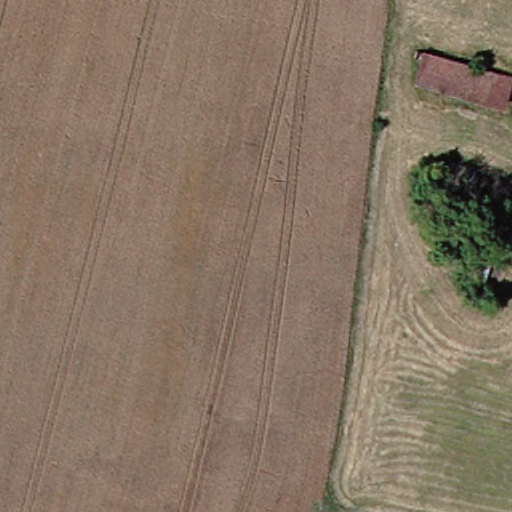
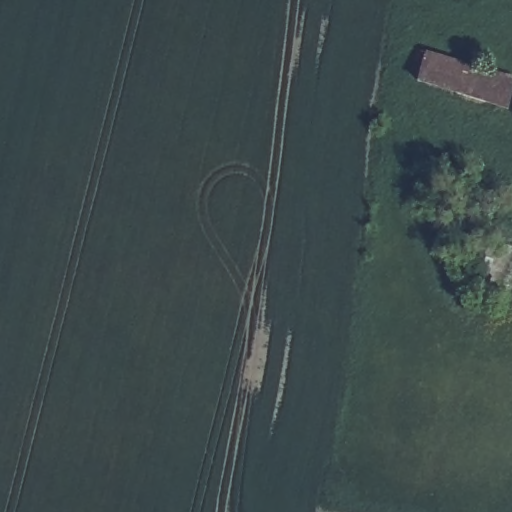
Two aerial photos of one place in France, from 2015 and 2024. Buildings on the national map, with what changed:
unchanged [(496,107),(471,98),(467,95),(450,88),(404,71),(410,44),(472,67),(506,79),(496,107)]

